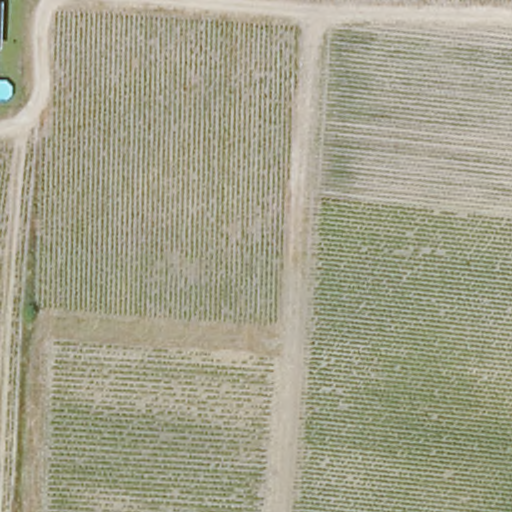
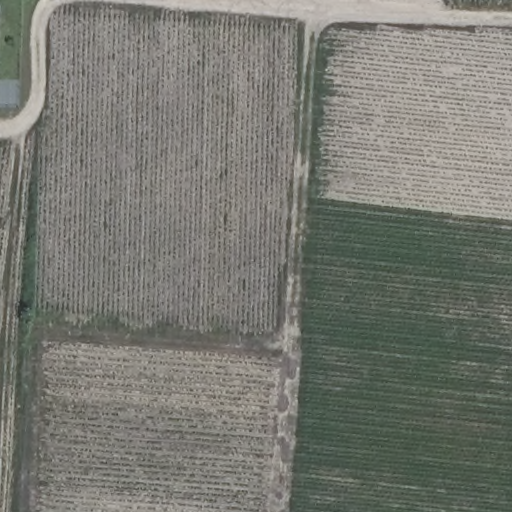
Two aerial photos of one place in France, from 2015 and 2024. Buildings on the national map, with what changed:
unchanged [(0,1),(1,1),(0,32),(0,1)]

